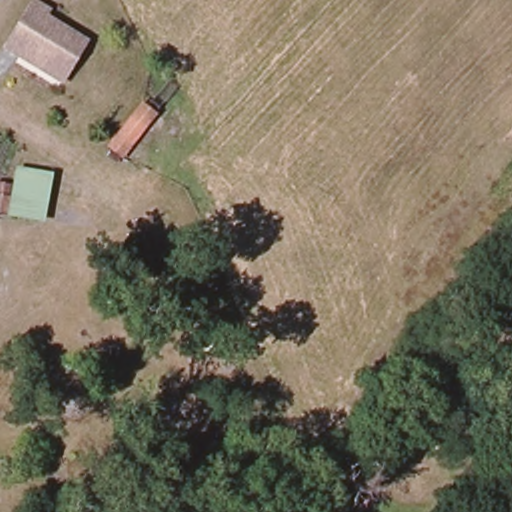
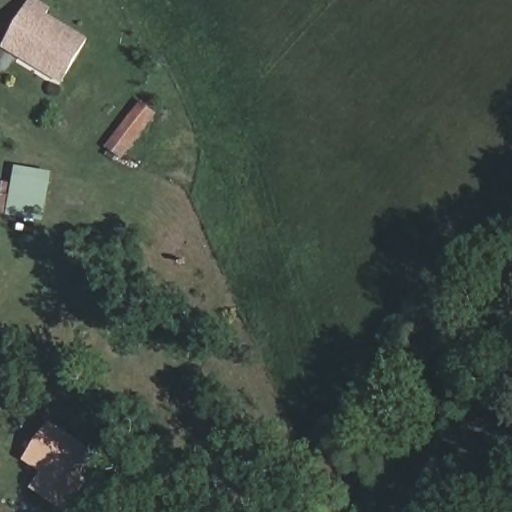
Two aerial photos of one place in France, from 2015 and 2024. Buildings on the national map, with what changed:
unchanged [(9,54),(36,7),(50,16),(47,22),(88,47),(68,81),(65,87),(23,62),(9,54)]
unchanged [(145,99),(160,110),(126,160),(107,151),(145,99)]
unchanged [(15,170),(54,175),(46,226),(0,215),(0,185),(11,187),(15,170)]
new [(66,512),(65,512),(30,488),(40,473),(23,461),(50,421),(104,457),(66,512)]

